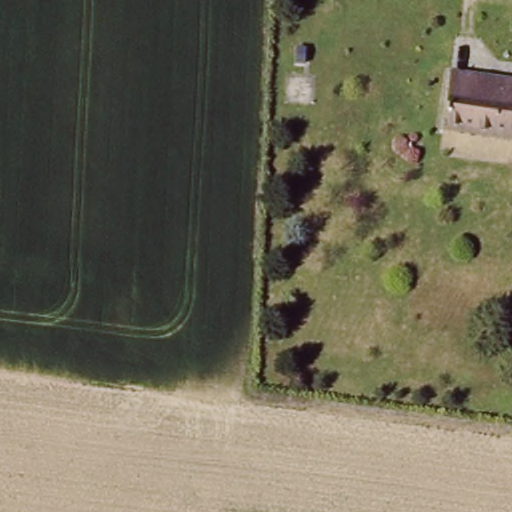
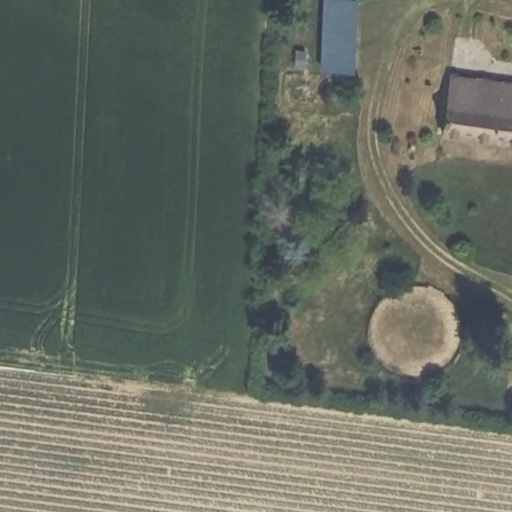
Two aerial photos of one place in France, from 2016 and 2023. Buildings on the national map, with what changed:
new [(320,68),(322,0),(357,0),(354,69),(320,68)]
unchanged [(440,131),(444,74),(512,84),(512,143),(440,131)]

